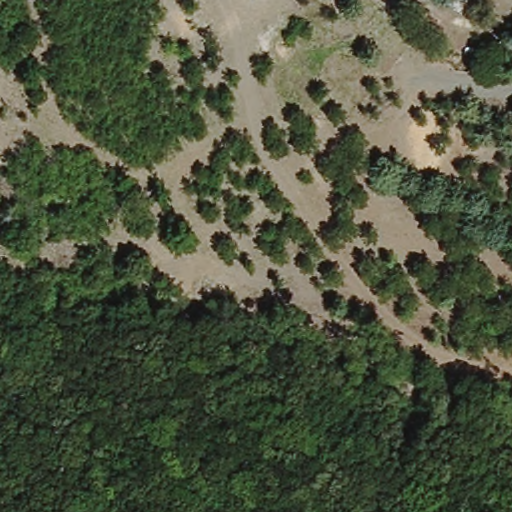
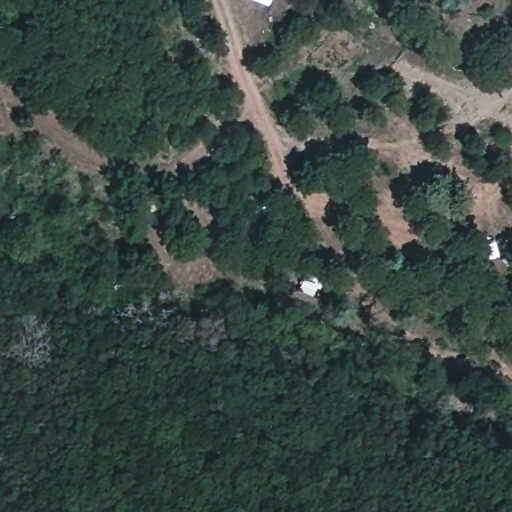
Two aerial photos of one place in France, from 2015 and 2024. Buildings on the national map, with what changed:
[]

